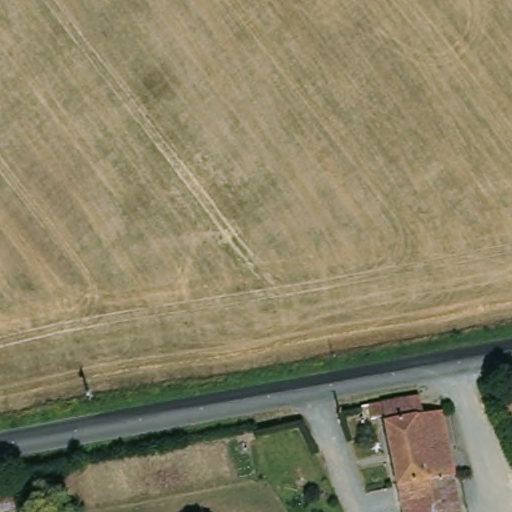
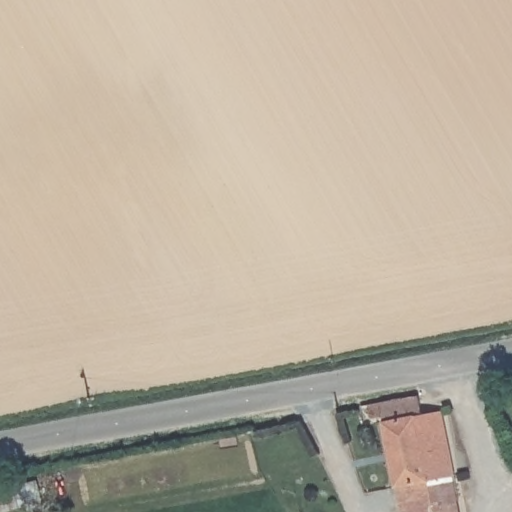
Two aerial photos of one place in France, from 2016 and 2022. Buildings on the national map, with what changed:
unchanged [(378,413),(363,416),(360,406),(446,390),(460,502),(461,512),(396,512),(378,413)]

